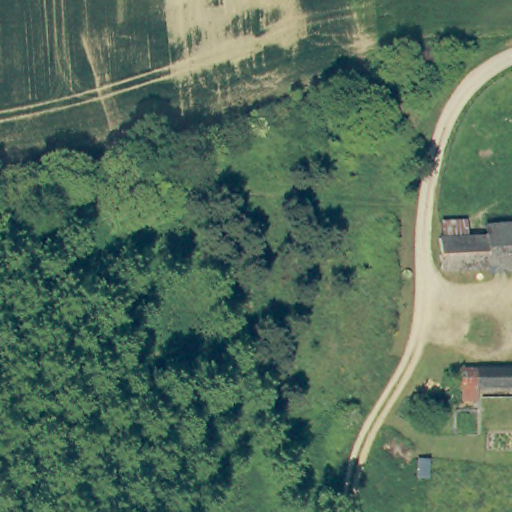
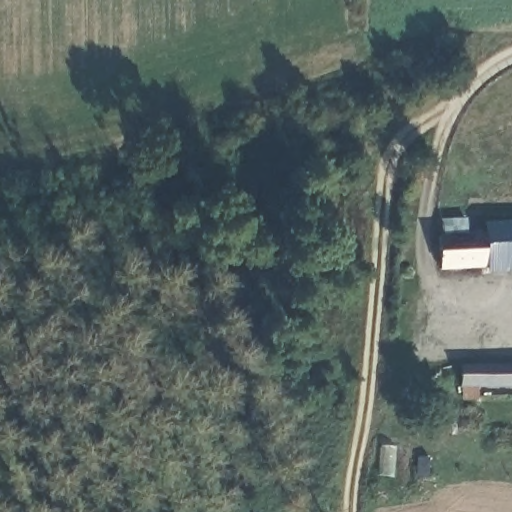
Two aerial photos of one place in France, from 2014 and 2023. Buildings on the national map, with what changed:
unchanged [(371,151),(343,146),(347,122),(374,127),(371,151)]
unchanged [(457,220),(485,222),(485,239),(498,240),(498,263),(453,263),(454,236),(456,236),(457,220)]
unchanged [(512,264),(498,263),(498,240),(499,229),(512,229),(512,264)]
unchanged [(512,367),(512,385),(487,385),(480,385),(480,401),(461,402),(460,385),(460,368),(512,367)]

